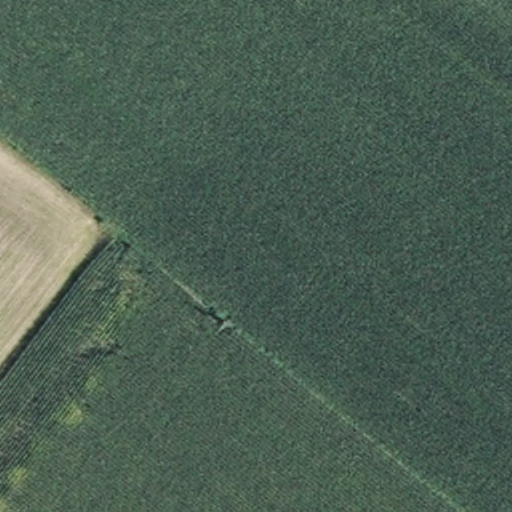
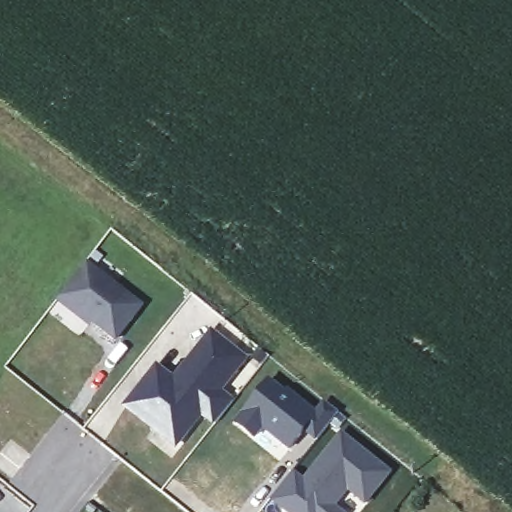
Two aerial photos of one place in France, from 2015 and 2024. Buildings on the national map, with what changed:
new [(86,262),(142,306),(116,339),(60,296),(86,262)]
new [(130,402),(157,368),(174,381),(192,358),(212,333),(245,360),(219,392),(221,393),(233,403),(215,424),(203,415),(201,414),(176,446),(154,429),(126,407),(130,402)]
new [(346,417),(338,427),(331,422),(316,440),(304,430),(289,449),(262,428),(255,436),(235,420),(270,377),(316,410),(325,399),(346,417)]
new [(302,477),(341,429),(393,470),(366,504),(349,491),(338,505),(347,512),(286,512),(269,499),(294,470),(302,477)]

